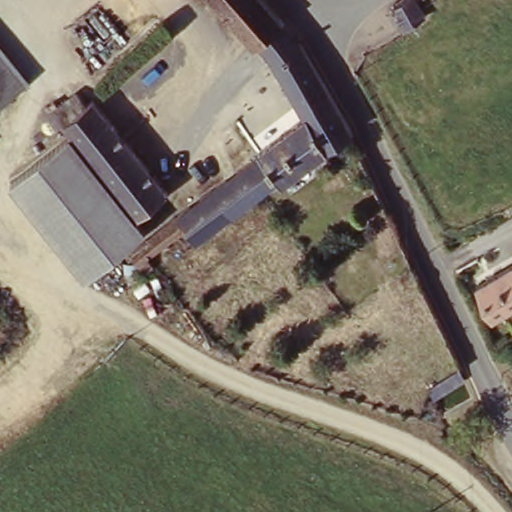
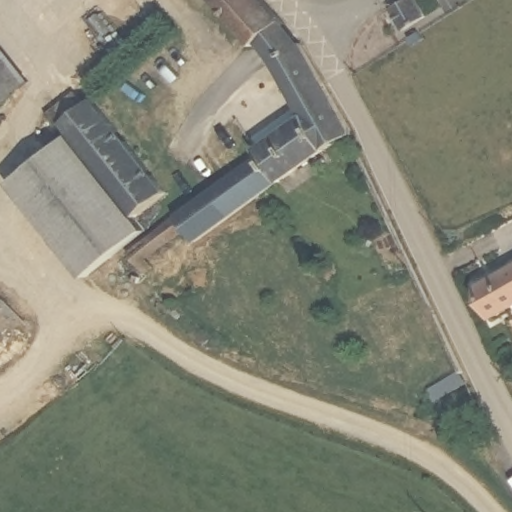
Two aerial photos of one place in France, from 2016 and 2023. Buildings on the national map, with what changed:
unchanged [(250,50),(208,0),(260,0),(282,25),(250,50)]
unchanged [(402,0),(414,0),(422,14),(398,28),(387,10),(402,0)]
unchanged [(250,50),(282,25),(303,49),(275,69),(250,50)]
unchanged [(192,230),(180,207),(263,161),(259,155),(306,127),(275,69),(303,49),(353,138),(346,141),(192,230)]
unchanged [(27,87),(0,110),(0,55),(27,87)]
unchanged [(127,212),(55,120),(84,96),(160,186),(127,212)]
unchanged [(127,212),(160,186),(168,195),(137,219),(145,231),(86,281),(10,183),(69,138),(127,212)]
unchanged [(512,270),(512,313),(495,321),(476,291),(512,270)]
unchanged [(461,386),(431,401),(426,390),(456,376),(461,386)]

